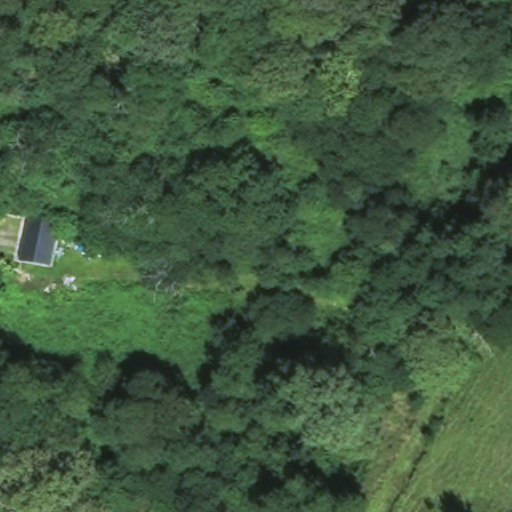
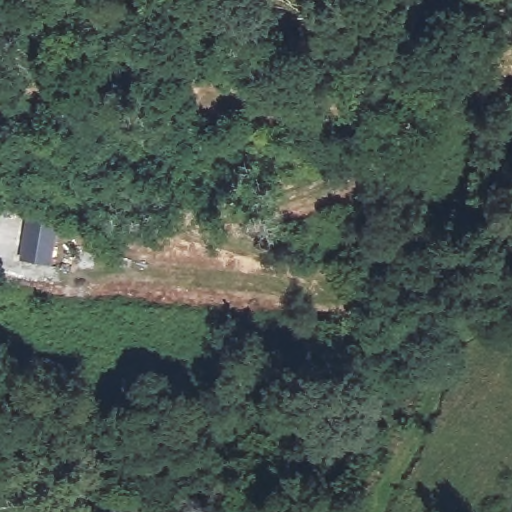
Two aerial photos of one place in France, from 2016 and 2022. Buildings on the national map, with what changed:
unchanged [(17,263),(24,214),(55,217),(49,269),(17,263)]

